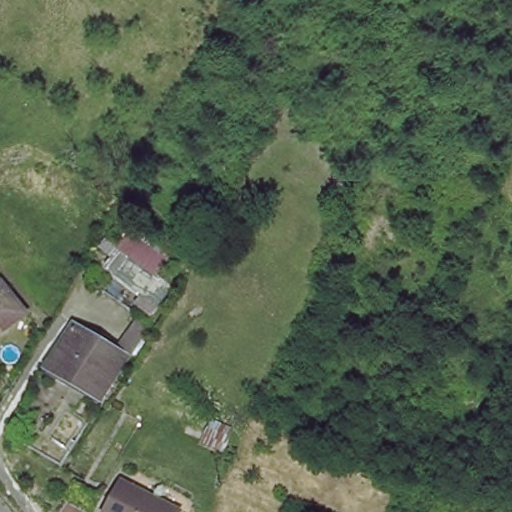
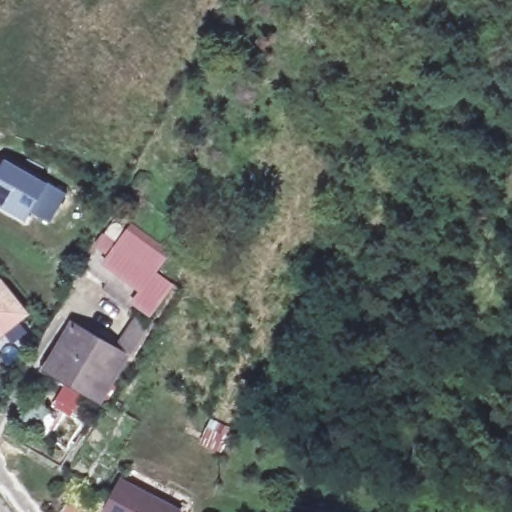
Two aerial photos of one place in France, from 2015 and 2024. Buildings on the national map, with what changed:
new [(27,223),(0,207),(0,161),(48,187),(27,223)]
unchanged [(147,315),(132,305),(139,295),(105,269),(137,234),(165,256),(152,275),(170,287),(147,315)]
unchanged [(25,314),(0,336),(0,289),(2,287),(25,314)]
unchanged [(42,367),(65,327),(120,358),(97,400),(42,367)]
unchanged [(119,483),(168,512),(102,512),(107,505),(119,483)]

